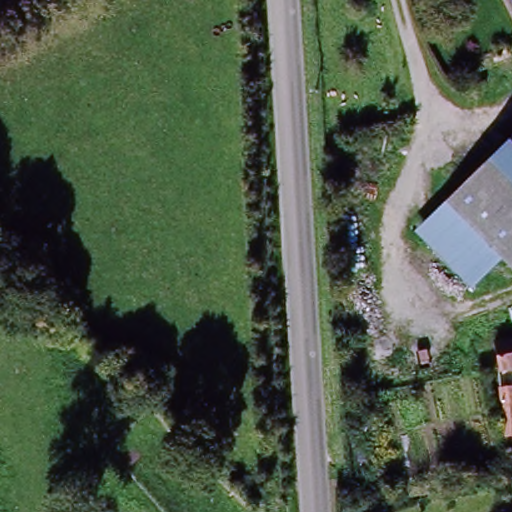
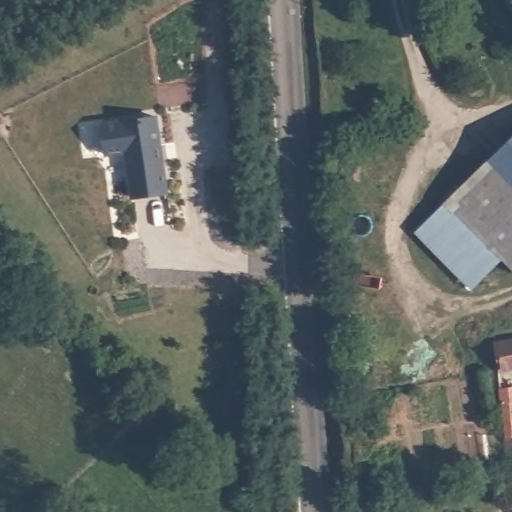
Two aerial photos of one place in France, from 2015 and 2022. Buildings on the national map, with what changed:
unchanged [(512,0),(512,8),(508,0),(512,0)]
new [(157,117),(168,193),(133,198),(126,152),(106,155),(102,125),(157,117)]
unchanged [(512,133),(512,160),(499,147),(512,133)]
unchanged [(499,147),(512,160),(512,244),(459,190),(499,147)]
unchanged [(434,215),(459,190),(512,244),(489,268),(434,215)]
unchanged [(489,268),(468,290),(414,238),(434,215),(489,268)]
unchanged [(499,343),(512,340),(512,367),(503,369),(499,343)]
unchanged [(504,437),(499,389),(512,387),(512,435),(504,437)]

